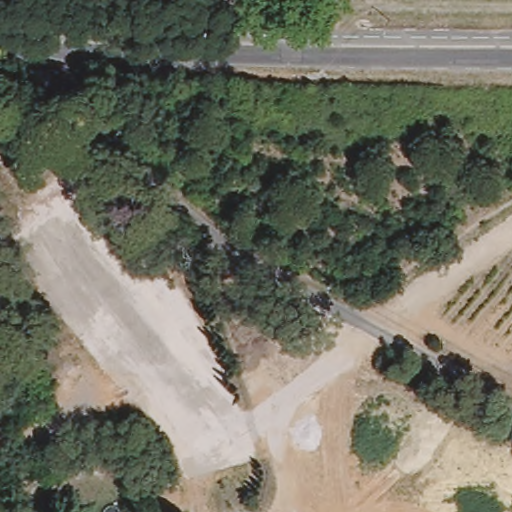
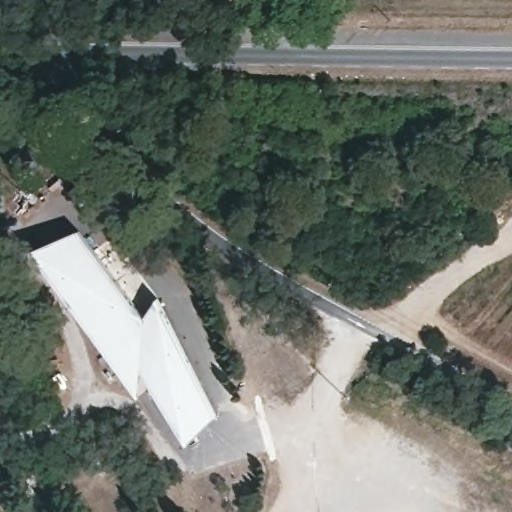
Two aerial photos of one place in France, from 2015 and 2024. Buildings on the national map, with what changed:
unchanged [(0,0),(9,0),(11,7),(0,11),(0,0)]
new [(186,432),(148,368),(148,398),(123,365),(44,257),(36,247),(84,228),(148,316),(163,295),(166,302),(221,415),(189,441),(186,432)]

